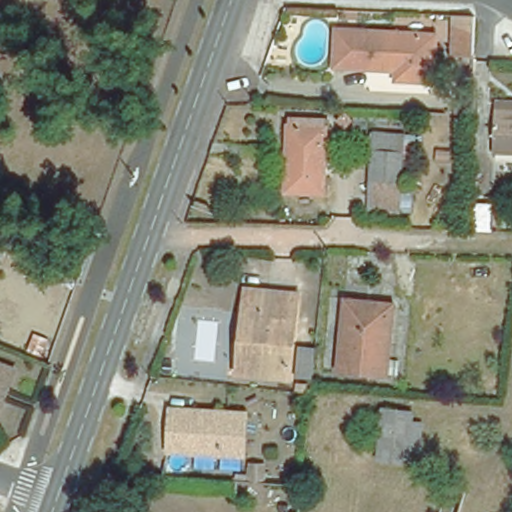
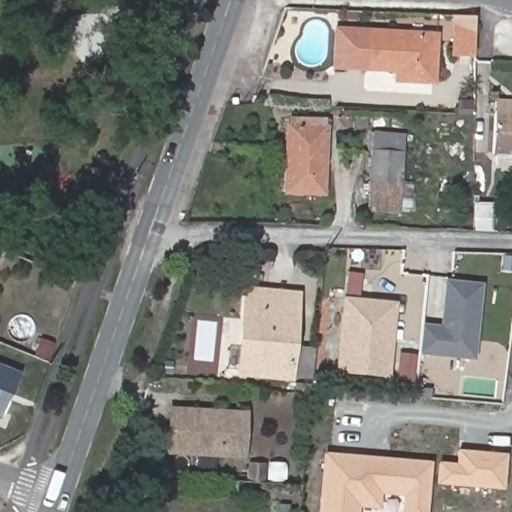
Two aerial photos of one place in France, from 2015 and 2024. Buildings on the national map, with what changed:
unchanged [(485,21),(484,59),(463,58),(464,20),(485,21)]
unchanged [(341,40),(440,45),(439,91),(401,89),(402,80),(340,76),(341,40)]
unchanged [(509,147),(511,106),(512,106),(512,147),(509,147)]
unchanged [(302,125),(302,118),(333,119),(332,126),(335,126),(333,192),(296,191),(298,125),(302,125)]
unchanged [(404,148),(385,147),(386,133),(405,134),(404,148)]
unchanged [(407,153),(414,153),(413,212),(407,212),(385,212),(385,152),(407,153)]
new [(473,201),(492,201),(490,233),(472,232),(473,201)]
unchanged [(0,279),(4,280),(0,289),(0,279)]
new [(484,284),(475,360),(420,354),(425,323),(440,325),(445,280),(484,284)]
unchanged [(245,344),(250,297),(296,300),(290,380),(253,376),(242,375),(245,344)]
unchanged [(396,374),(348,369),(353,309),(354,300),(379,302),(403,304),(396,374)]
unchanged [(297,380),(299,351),(315,353),(312,382),(297,380)]
unchanged [(0,419),(0,365),(33,379),(26,396),(15,425),(8,422),(0,419)]
unchanged [(247,459),(173,453),(174,437),(176,410),(194,412),(251,416),(247,459)]
unchanged [(388,458),(394,410),(421,413),(420,420),(432,421),(429,451),(417,450),(416,461),(388,458)]
new [(436,462),(454,463),(455,449),(506,454),(503,490),(435,484),(436,462)]
new [(427,512),(401,512),(402,496),(381,494),(380,509),(359,507),(359,512),(319,512),(323,452),(431,464),(427,512)]
unchanged [(270,464),(269,480),(254,479),(255,463),(270,464)]
unchanged [(308,512),(285,512),(285,504),(247,502),(250,483),(310,487),(308,512)]

